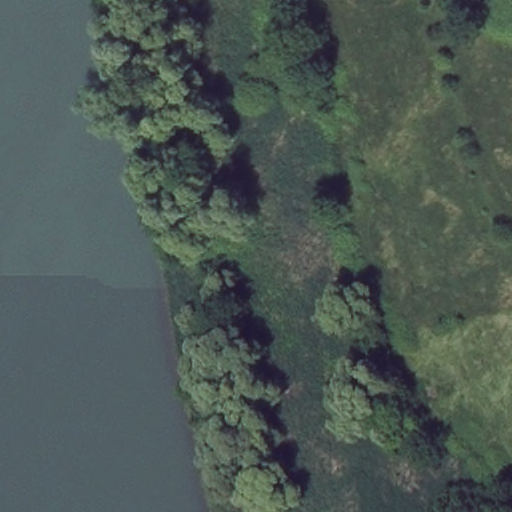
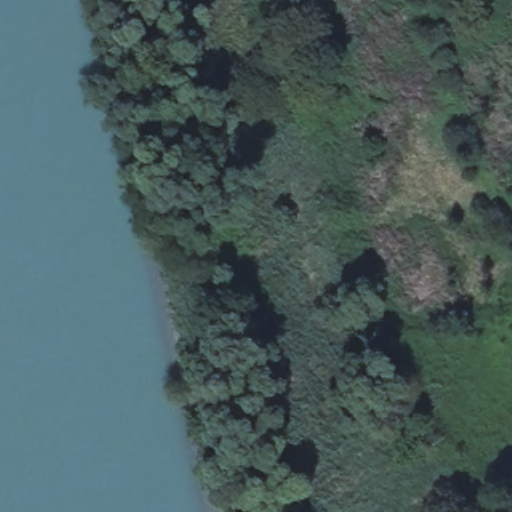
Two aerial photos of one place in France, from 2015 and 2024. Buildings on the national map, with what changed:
[]

